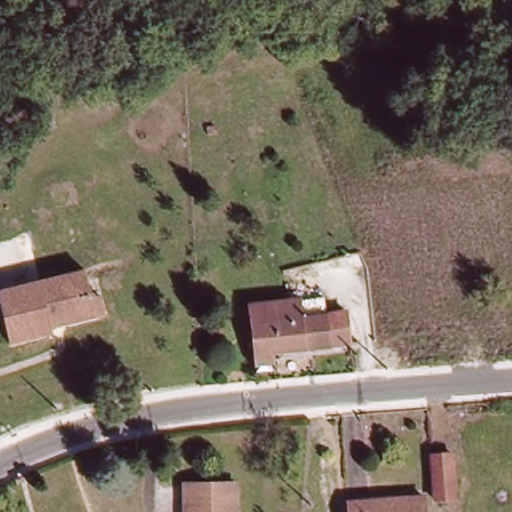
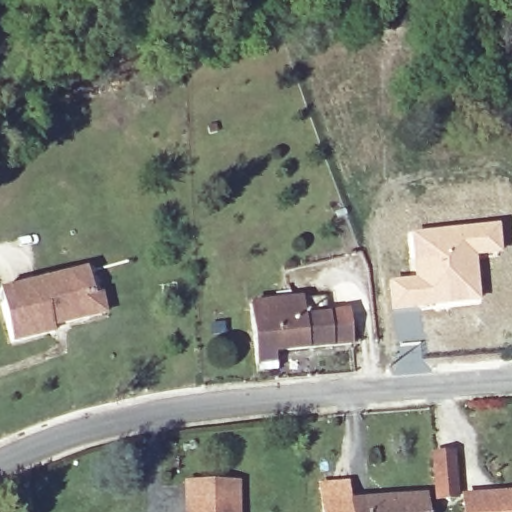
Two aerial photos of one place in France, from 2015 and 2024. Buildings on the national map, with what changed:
unchanged [(391,44),(380,47),(377,36),(388,33),(391,44)]
new [(398,340),(393,313),(389,280),(412,277),(408,234),(498,224),(500,255),(476,258),(480,300),(419,310),(423,339),(398,340)]
unchanged [(88,267),(93,293),(103,290),(106,315),(55,326),(55,334),(13,343),(2,288),(88,267)]
unchanged [(275,354),(276,370),(256,372),(249,308),(302,305),(304,323),(307,352),(275,354)]
unchanged [(304,323),(347,318),(350,348),(307,352),(304,323)]
unchanged [(436,498),(433,456),(457,454),(460,497),(436,498)]
new [(465,496),(484,495),(512,493),(512,512),(465,512),(465,496)]
unchanged [(182,497),(237,494),(238,512),(183,512),(182,497)]
unchanged [(423,498),(424,512),(350,512),(349,505),(423,498)]

